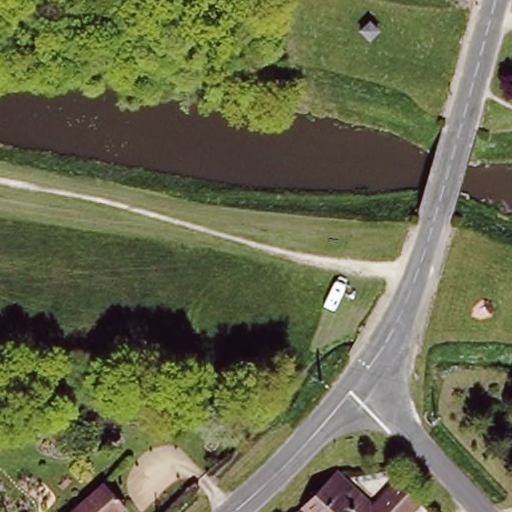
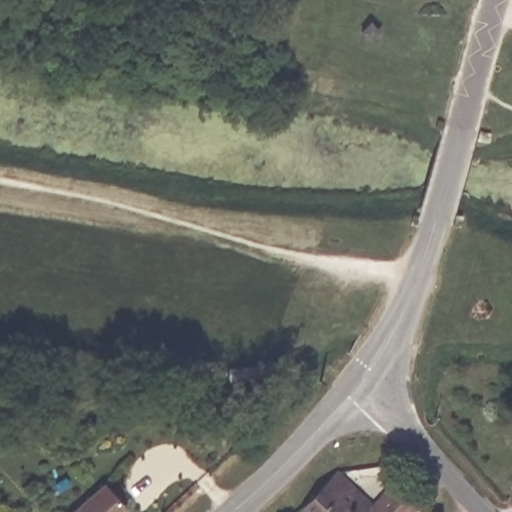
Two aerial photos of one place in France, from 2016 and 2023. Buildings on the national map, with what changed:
unchanged [(379,512),(308,512),(303,506),(336,470),(374,507),(379,512)]
unchanged [(379,512),(374,507),(387,493),(378,484),(388,474),(397,483),(419,504),(412,512),(379,512)]
unchanged [(129,507),(124,512),(75,512),(108,483),(129,507)]
unchanged [(66,512),(63,512),(64,510),(66,512)]

